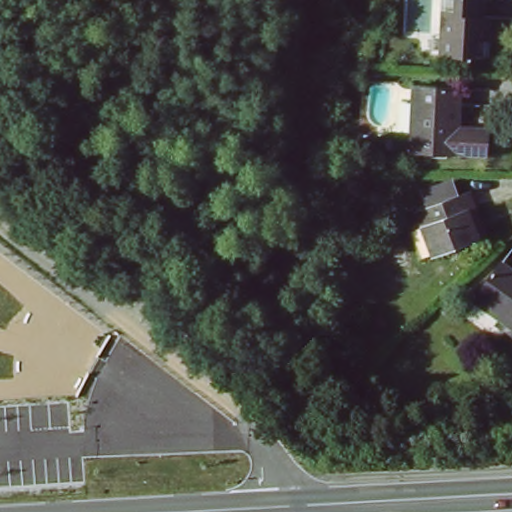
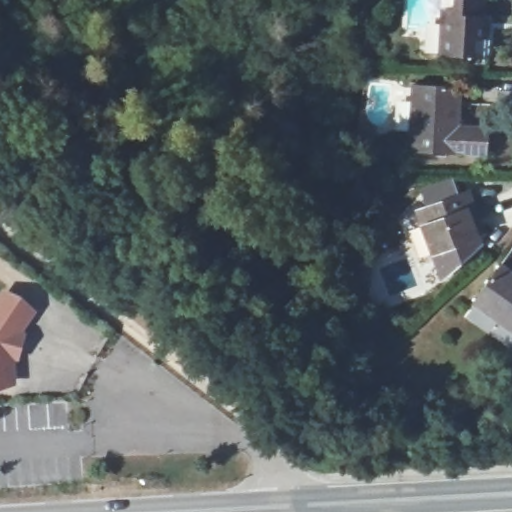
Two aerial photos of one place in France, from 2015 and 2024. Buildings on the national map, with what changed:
unchanged [(476,13),(484,13),(480,53),(431,50),(437,0),(477,0),(476,13)]
unchanged [(454,93),(450,128),(482,130),(480,157),(401,153),(407,91),(454,93)]
unchanged [(413,213),(464,193),(468,203),(481,232),(472,236),(429,254),(413,213)]
unchanged [(498,265),(512,274),(512,328),(471,301),(498,265)]
new [(38,310),(16,348),(13,388),(0,388),(0,291),(2,288),(38,310)]

